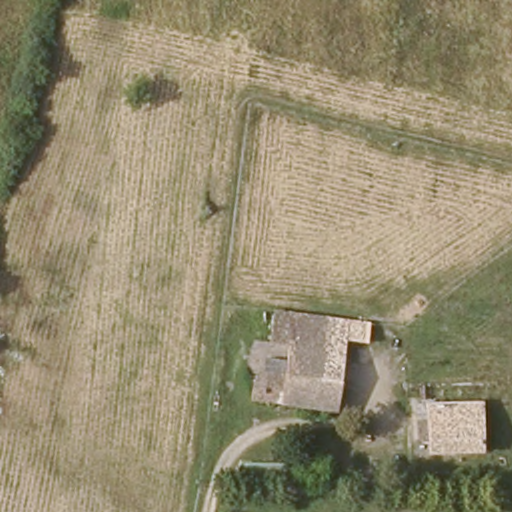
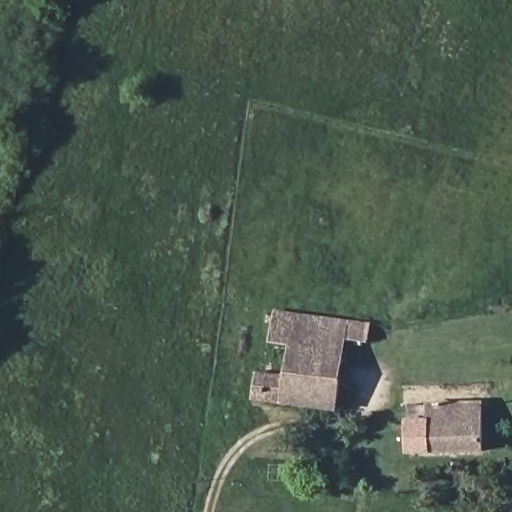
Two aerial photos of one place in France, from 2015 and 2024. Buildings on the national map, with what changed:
unchanged [(375,330),(371,349),(350,347),(338,415),(284,406),(292,358),(301,360),(303,342),(276,338),(280,318),(353,327),(375,330)]
unchanged [(284,406),(265,402),(270,355),(292,358),(284,406)]
unchanged [(491,455),(428,457),(426,442),(415,443),(413,406),(426,405),(490,404),(491,455)]

